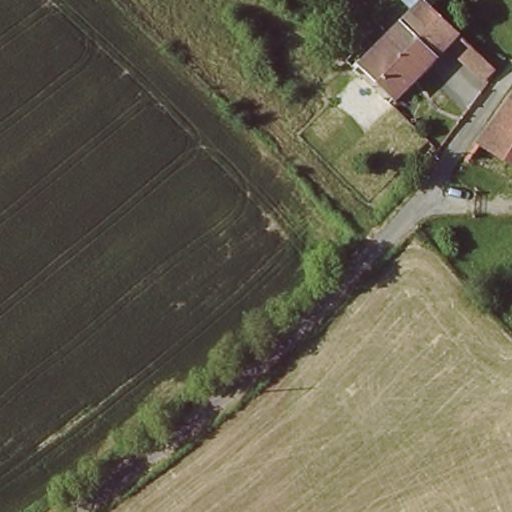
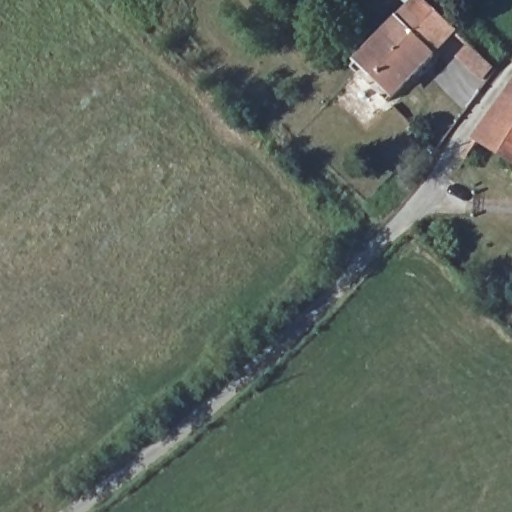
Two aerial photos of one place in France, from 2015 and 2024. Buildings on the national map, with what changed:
unchanged [(424,0),(427,0),(461,27),(393,98),(359,67),(424,0)]
unchanged [(481,86),(455,67),(466,54),(493,75),(481,86)]
unchanged [(512,94),(512,160),(477,136),(512,94)]

